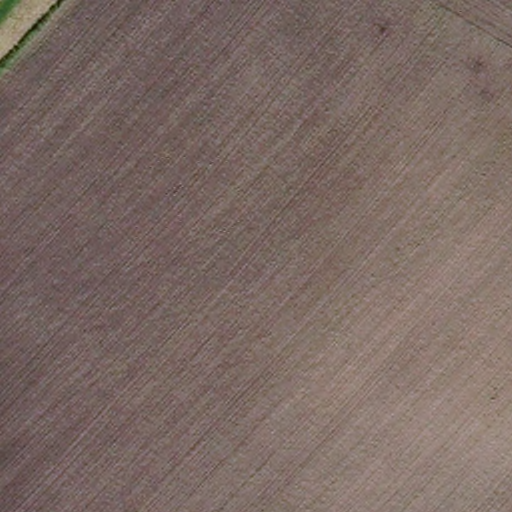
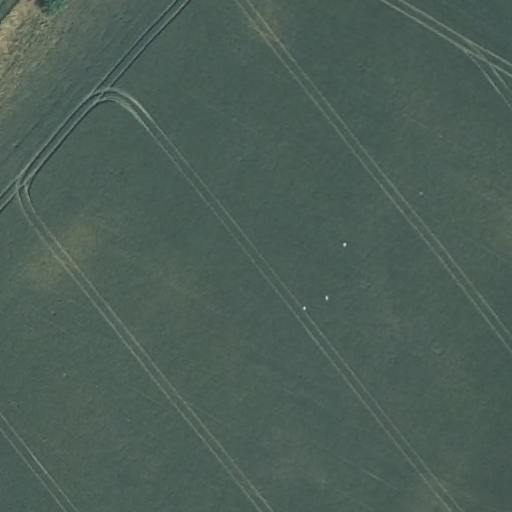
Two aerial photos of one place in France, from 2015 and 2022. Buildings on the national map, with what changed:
[]

